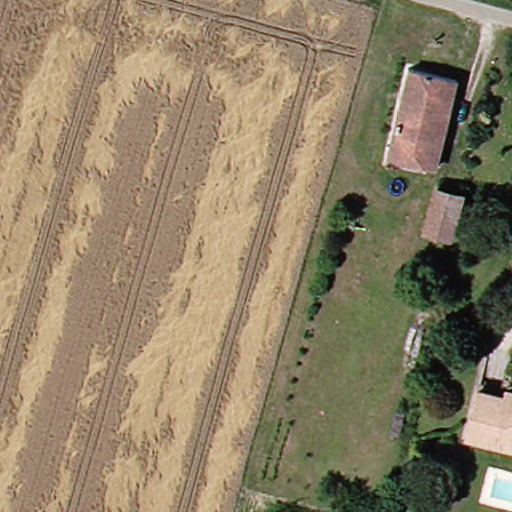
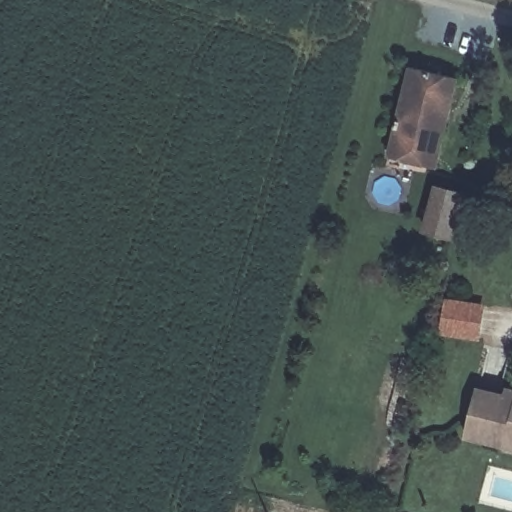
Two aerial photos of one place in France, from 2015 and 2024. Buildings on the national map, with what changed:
unchanged [(422,158),(408,156),(405,163),(393,160),(416,63),(443,69),(422,158)]
unchanged [(460,74),(437,161),(422,158),(443,69),(460,74)]
unchanged [(464,193),(452,235),(424,227),(440,187),(464,193)]
new [(484,304),(480,340),(440,335),(445,299),(484,304)]
unchanged [(485,385),(512,390),(512,445),(472,435),(485,385)]

